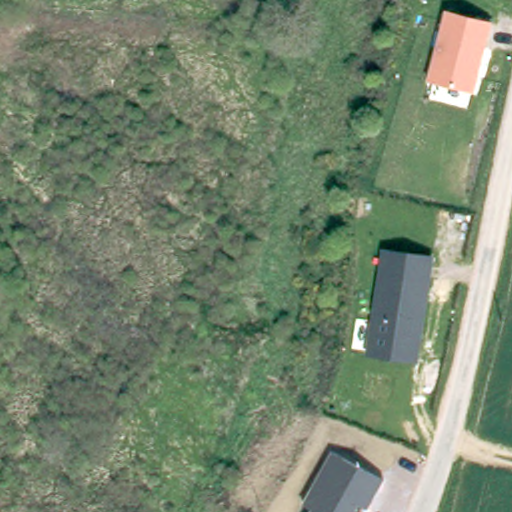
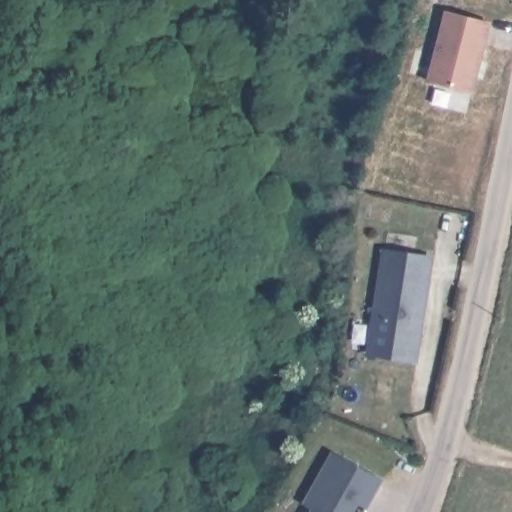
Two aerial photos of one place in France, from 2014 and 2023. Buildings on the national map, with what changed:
unchanged [(444,10),(492,21),(474,92),(427,80),(444,10)]
unchanged [(381,249),(434,256),(418,363),(366,355),(381,249)]
unchanged [(331,451),(383,478),(366,508),(359,504),(355,512),(310,512),(311,508),(303,503),(331,451)]

